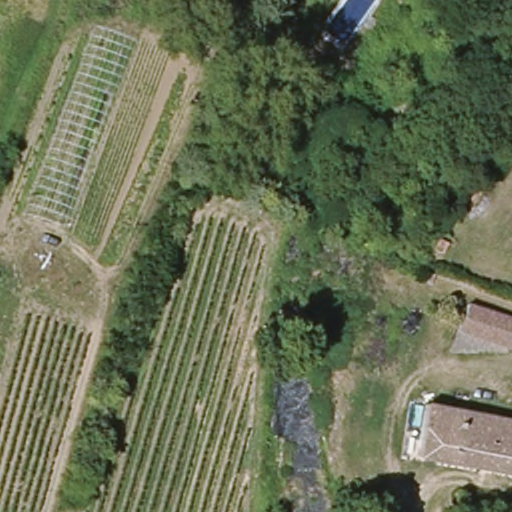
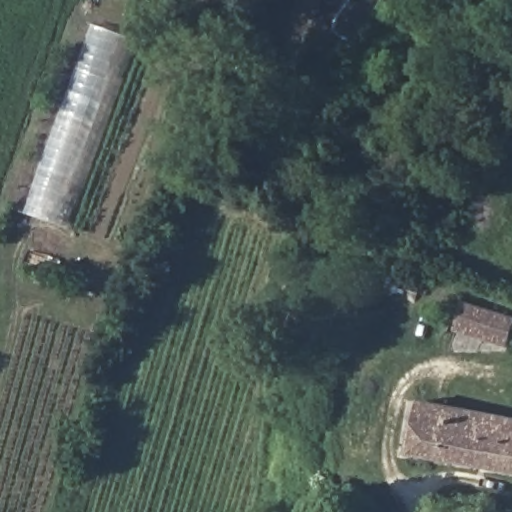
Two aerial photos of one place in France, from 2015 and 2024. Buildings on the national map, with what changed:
new [(65,228),(23,214),(90,24),(132,38),(65,228)]
unchanged [(512,331),(507,345),(455,328),(465,302),(512,317),(512,331)]
unchanged [(425,407),(512,421),(512,474),(415,459),(425,407)]

